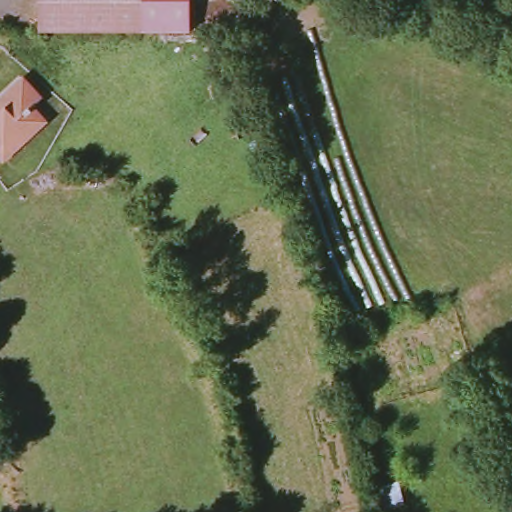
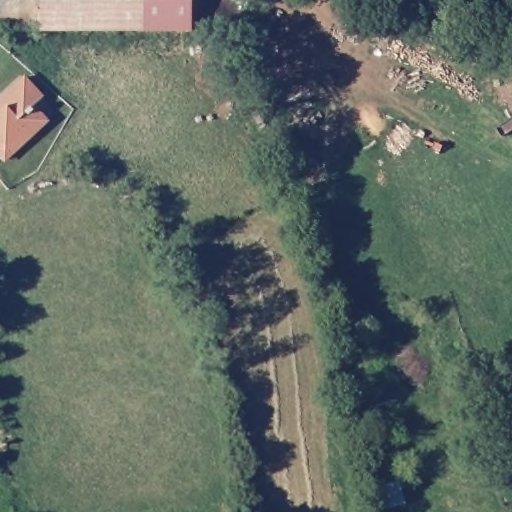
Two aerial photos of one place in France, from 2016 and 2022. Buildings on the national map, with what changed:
unchanged [(38,31),(38,0),(189,0),(189,30),(38,31)]
unchanged [(5,110),(0,104),(24,81),(42,101),(33,110),(45,125),(39,131),(4,163),(0,158),(0,115),(5,110)]

